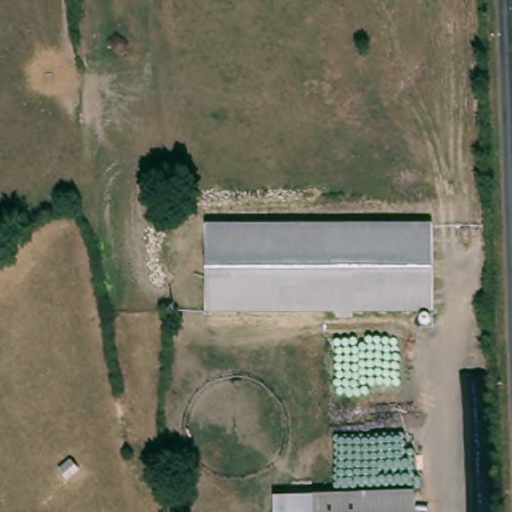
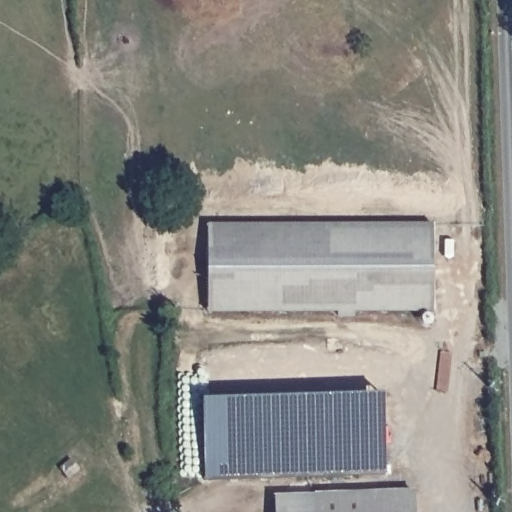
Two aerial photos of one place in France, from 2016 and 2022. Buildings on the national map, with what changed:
unchanged [(433,225),(432,314),(354,313),(354,318),(336,319),(335,314),(206,314),(206,225),(433,225)]
new [(204,480),(201,400),(382,396),(385,474),(204,480)]
unchanged [(414,512),(274,512),(273,496),(413,490),(414,512)]

